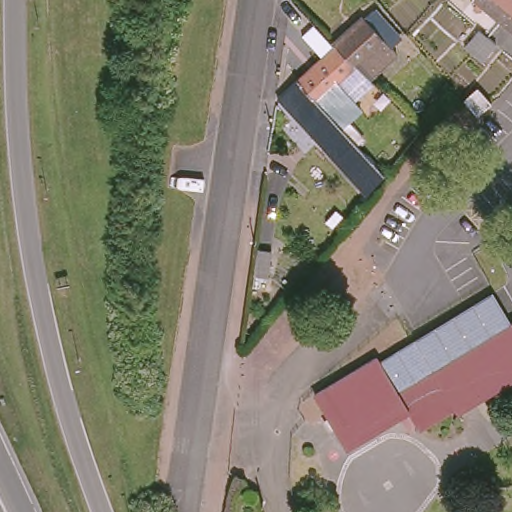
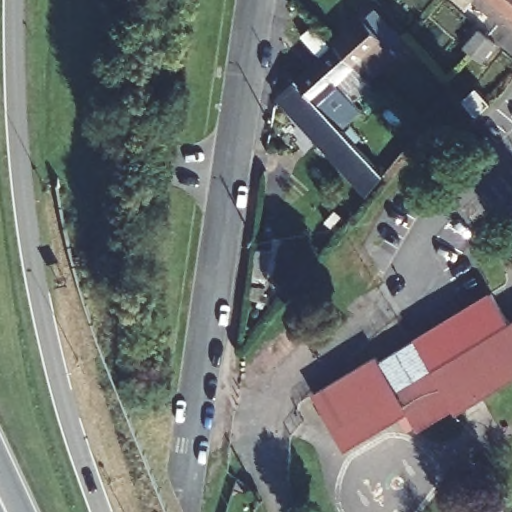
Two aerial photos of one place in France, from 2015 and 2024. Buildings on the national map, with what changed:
unchanged [(502,15),(484,0),(512,0),(512,4),(502,15)]
unchanged [(512,4),(512,24),(502,15),(512,4)]
unchanged [(371,9),(398,39),(371,64),(363,55),(358,60),(353,65),(333,45),(371,9)]
unchanged [(462,51),(476,35),(483,41),(491,47),(477,65),(469,58),(462,51)]
unchanged [(333,45),(353,65),(335,81),(354,100),(334,120),(296,79),(333,45)]
unchanged [(334,120),(382,174),(376,180),(366,192),(278,95),(296,79),(334,120)]
unchanged [(311,399),(325,391),(374,362),(378,367),(403,352),(414,345),(483,303),(490,298),(508,330),(396,398),(381,375),(320,413),(311,399)]
unchanged [(512,327),(512,380),(456,414),(437,385),(400,406),(404,413),(344,451),(320,413),(381,375),(396,398),(508,330),(512,327)]

